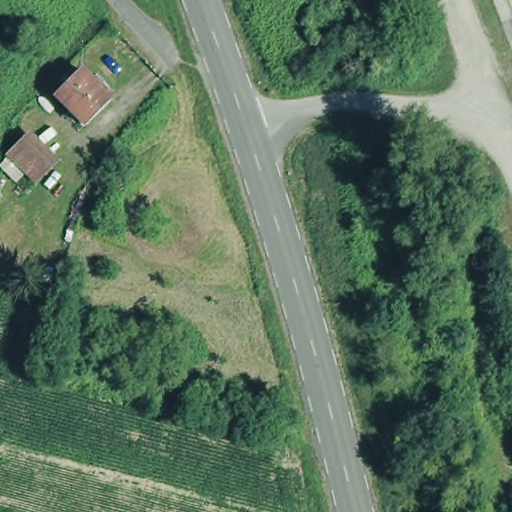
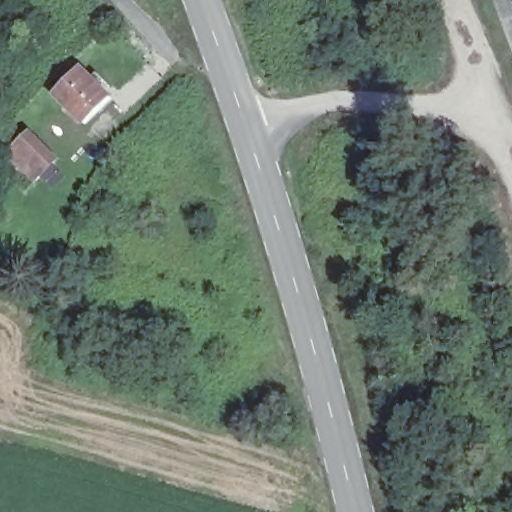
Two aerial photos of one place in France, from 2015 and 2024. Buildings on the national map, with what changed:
unchanged [(85,74),(115,102),(91,126),(61,97),(85,74)]
unchanged [(31,144),(57,170),(41,187),(15,159),(31,144)]

